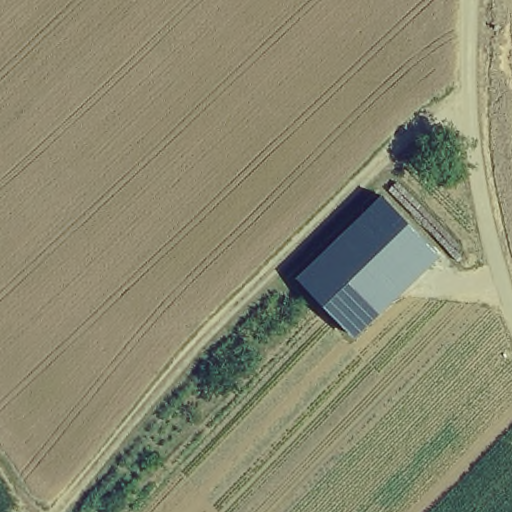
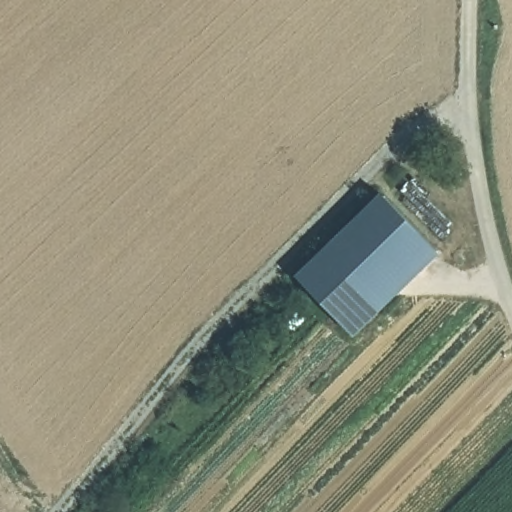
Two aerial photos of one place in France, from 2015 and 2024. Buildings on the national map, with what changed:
unchanged [(358,340),(299,277),(387,196),(443,257),(358,340)]

